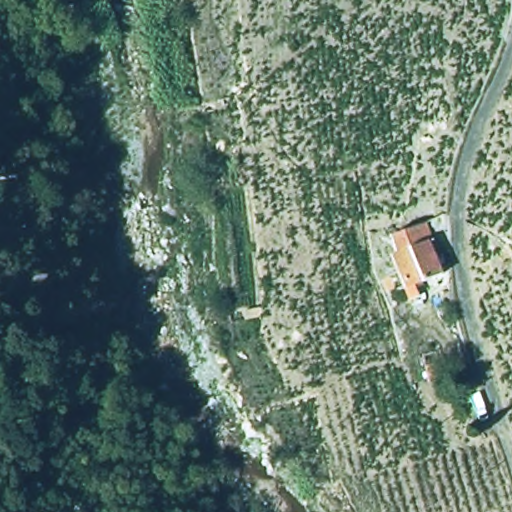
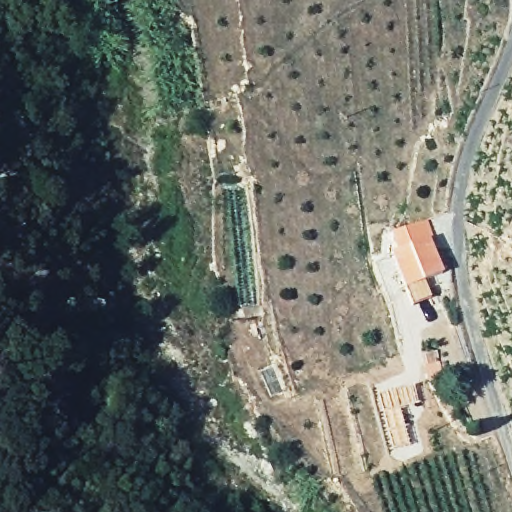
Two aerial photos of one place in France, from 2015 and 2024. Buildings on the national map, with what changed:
unchanged [(433,239),(430,241),(442,272),(436,274),(439,282),(417,290),(419,294),(410,298),(391,253),(397,250),(390,234),(426,221),(433,239)]

